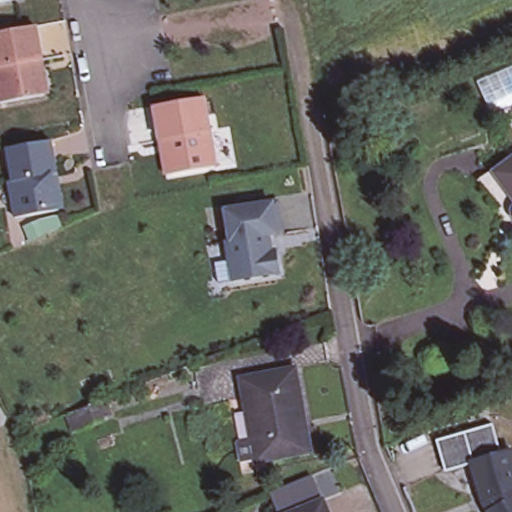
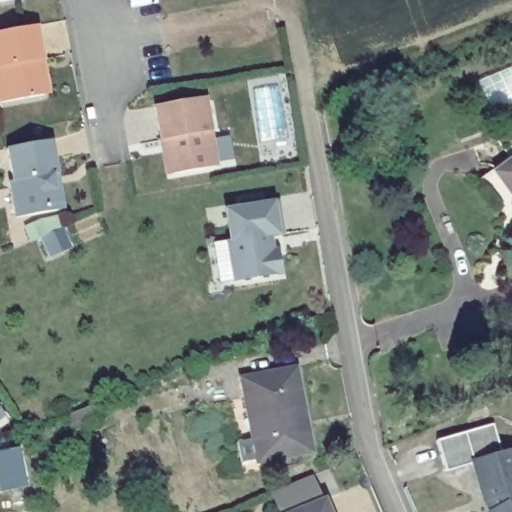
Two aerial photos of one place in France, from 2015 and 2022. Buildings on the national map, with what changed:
unchanged [(0,0),(9,0),(0,2),(0,0)]
unchanged [(46,75),(49,89),(44,95),(0,103),(0,100),(0,32),(3,31),(37,25),(42,59),(44,72),(45,75),(46,75)]
unchanged [(161,139),(155,105),(205,98),(217,167),(172,174),(167,174),(161,139)]
unchanged [(64,204),(59,210),(16,217),(10,181),(14,180),(8,147),(52,140),(59,174),(61,189),(64,204)]
unchanged [(512,154),(512,204),(488,174),(512,154)]
unchanged [(280,268),(276,274),(234,280),(228,240),(231,239),(227,209),(279,201),(284,232),(275,234),(278,253),(280,268)]
unchanged [(252,399),(250,382),(300,374),(300,380),(306,416),(300,417),(307,458),(271,464),(264,466),(263,463),(249,465),(245,443),(259,441),(252,399)]
unchanged [(116,413),(77,429),(70,413),(109,397),(116,413)]
unchanged [(487,509),(492,507),(480,486),(477,487),(469,461),(442,469),(433,439),(488,424),(497,453),(510,449),(512,456),(512,512),(488,512),(487,509)]
new [(28,486),(2,491),(0,481),(0,454),(22,449),(28,486)]
unchanged [(291,507),(287,496),(315,484),(324,496),(330,512),(282,512),(291,507)]

